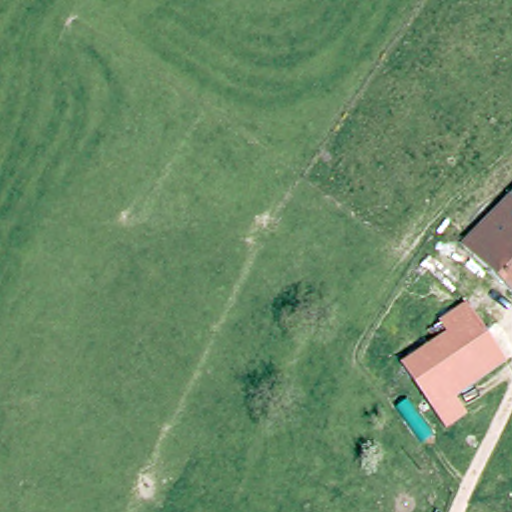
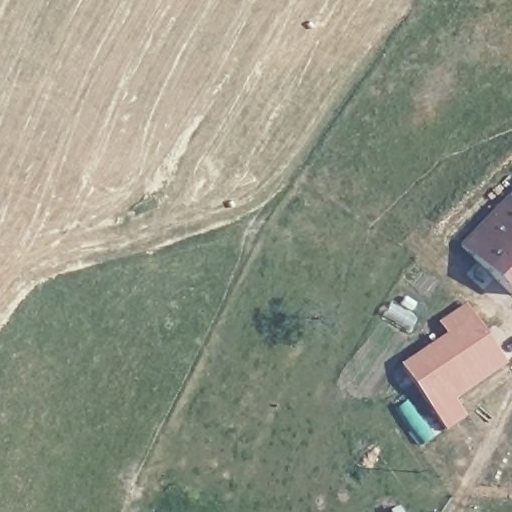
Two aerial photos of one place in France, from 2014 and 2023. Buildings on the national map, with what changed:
unchanged [(512,298),(462,248),(512,198),(512,298)]
unchanged [(502,356),(455,391),(465,407),(445,421),(401,359),(430,336),(422,323),(435,315),(460,297),(502,356)]
unchanged [(437,426),(424,436),(397,400),(411,390),(437,426)]

